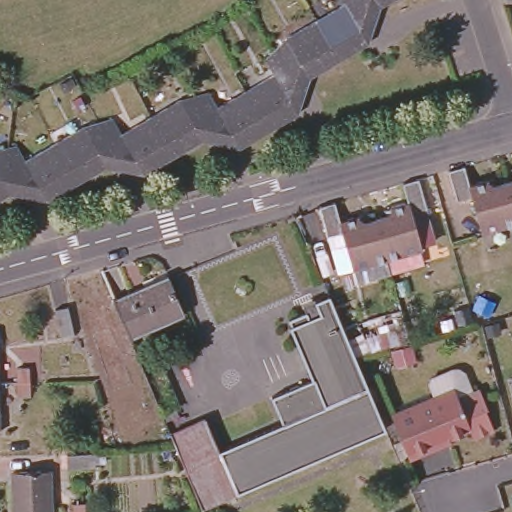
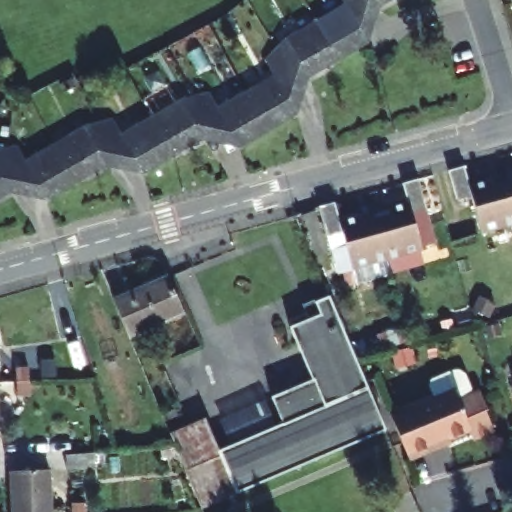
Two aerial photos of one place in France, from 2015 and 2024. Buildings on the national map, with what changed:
unchanged [(364,44),(306,79),(292,116),(238,147),(201,140),(141,173),(103,167),(45,200),(8,193),(0,197),(0,151),(13,147),(22,162),(78,130),(109,121),(117,136),(179,101),(206,94),(214,109),(271,77),(263,61),(286,38),(342,5),(339,0),(386,0),(376,6),(364,44)]
unchanged [(473,201),(459,205),(451,176),(467,172),(473,190),(496,184),(497,190),(506,188),(512,211),(512,231),(484,239),(473,201)]
unchanged [(388,217),(386,210),(410,203),(404,185),(420,180),(429,209),(414,214),(424,250),(389,260),(384,242),(378,220),(388,217)]
unchanged [(506,188),(512,186),(512,211),(506,188)]
unchanged [(384,242),(389,260),(354,271),(344,234),(330,237),(321,208),(337,203),(343,222),(367,215),(369,222),(378,220),(384,242)]
unchanged [(132,335),(116,299),(173,276),(188,311),(132,335)]
unchanged [(281,421),(271,395),(310,377),(289,325),(291,325),(289,318),(316,306),(315,301),(329,295),(355,357),(384,428),(236,490),(219,447),(281,421)]
unchanged [(16,395),(15,382),(15,368),(28,368),(28,381),(28,395),(16,395)]
unchanged [(428,400),(424,388),(426,382),(442,375),(452,399),(473,390),(482,411),(479,412),(488,432),(468,440),(464,432),(430,446),(433,452),(404,463),(385,417),(428,400)]
unchanged [(508,377),(512,376),(512,392),(508,377)]
unchanged [(206,414),(219,447),(236,490),(198,507),(168,427),(206,414)]
unchanged [(11,481),(14,481),(14,470),(50,469),(51,512),(12,512),(11,481)]
unchanged [(71,506),(84,506),(84,512),(72,512),(71,506)]

